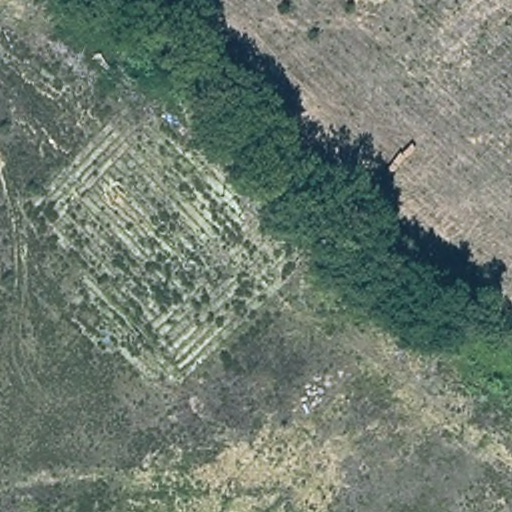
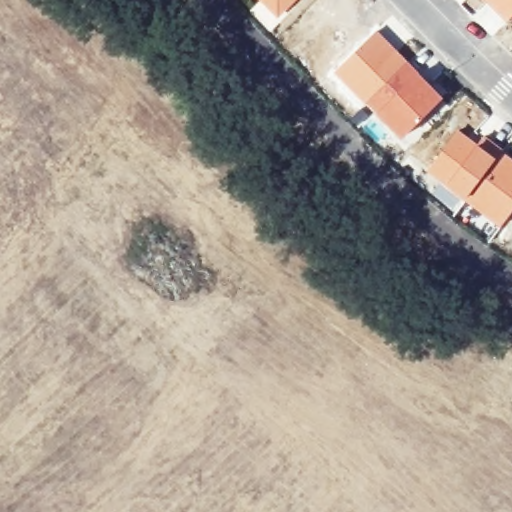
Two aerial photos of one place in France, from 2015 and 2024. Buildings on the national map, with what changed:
new [(257,0),(298,0),(276,21),(257,0)]
new [(456,0),(465,0),(460,5),(456,0)]
new [(480,0),(512,0),(512,17),(505,24),(480,0)]
new [(377,30),(444,97),(401,139),(333,72),(377,30)]
new [(457,128),(477,143),(484,136),(505,151),(463,202),(425,172),(457,128)]
new [(505,151),(512,156),(512,212),(500,228),(463,202),(505,151)]

